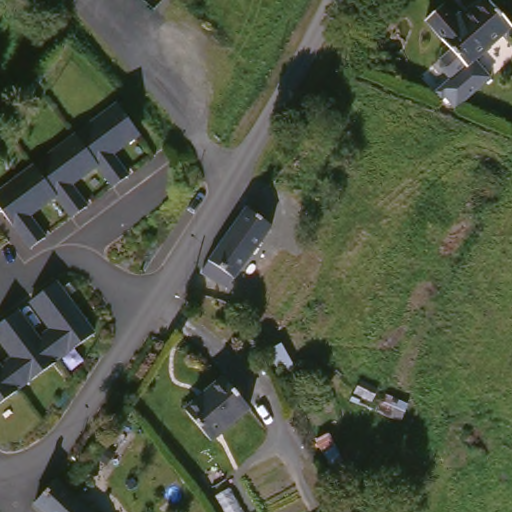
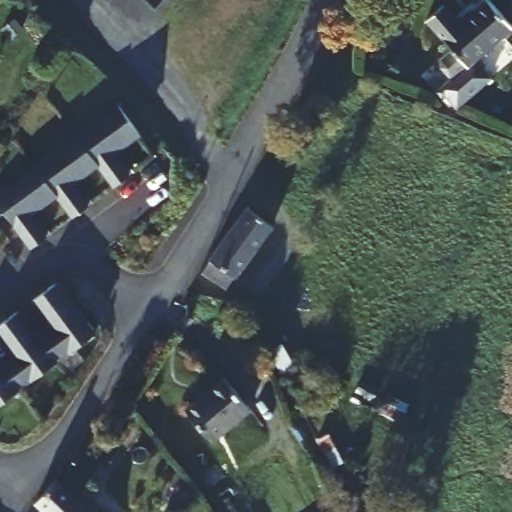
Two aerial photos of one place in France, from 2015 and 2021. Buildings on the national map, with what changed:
unchanged [(512,31),(492,48),(502,59),(448,107),(434,90),(447,83),(433,60),(444,49),(424,24),(444,1),(462,18),(484,0),(487,0),(512,24),(512,31)]
unchanged [(94,117),(118,100),(139,128),(116,143),(113,145),(128,168),(113,178),(98,156),(72,173),(87,194),(72,205),(57,183),(31,201),(46,222),(31,233),(0,192),(0,180),(94,117)]
unchanged [(199,275),(224,237),(239,214),(263,230),(250,250),(248,254),(222,291),(199,275)]
unchanged [(2,364),(17,354),(0,329),(0,320),(9,314),(23,305),(43,335),(58,325),(38,295),(64,279),(66,279),(102,332),(75,353),(74,352),(60,362),(61,363),(34,381),(34,379),(19,389),(19,390),(0,403),(0,360),(2,364)]
unchanged [(313,362),(299,374),(285,352),(299,340),(313,362)]
unchanged [(178,411),(193,401),(218,382),(242,414),(214,434),(201,442),(178,411)]
unchanged [(54,489),(77,512),(39,512),(31,504),(47,484),(54,489)]
unchanged [(238,512),(219,512),(211,496),(225,489),(238,512)]

